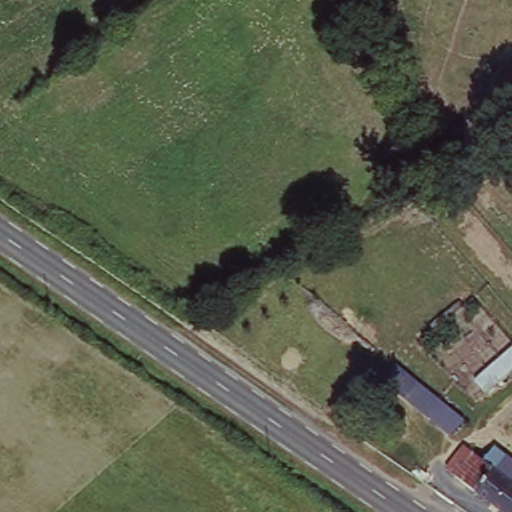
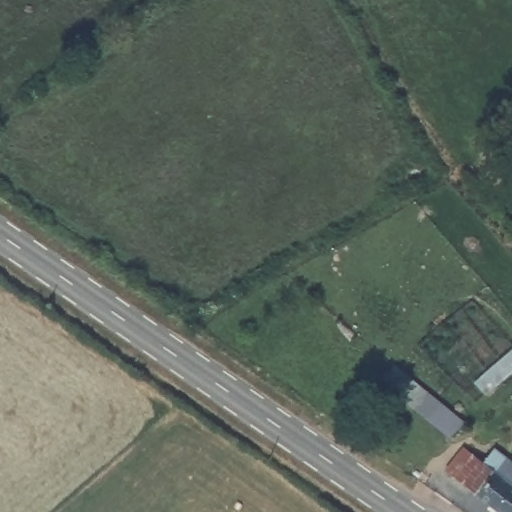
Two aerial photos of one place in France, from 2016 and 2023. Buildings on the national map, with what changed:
unchanged [(429,385),(449,403),(407,449),(385,433),(429,385)]
unchanged [(512,466),(512,505),(490,488),(507,463),(512,466)]

